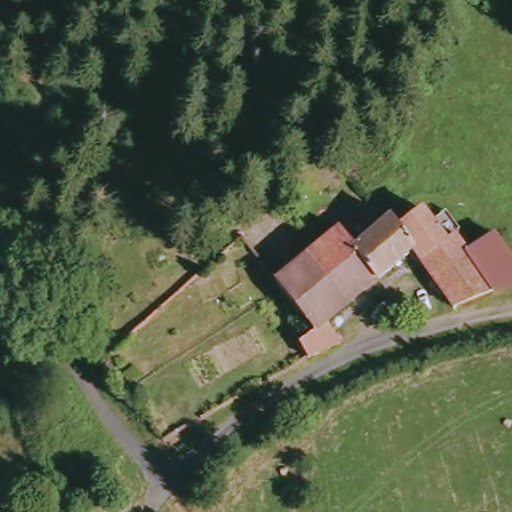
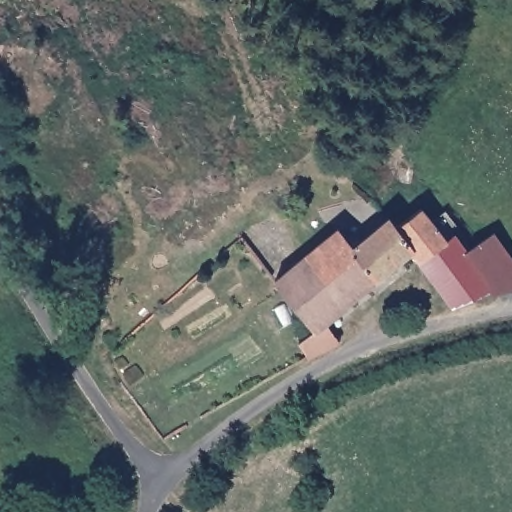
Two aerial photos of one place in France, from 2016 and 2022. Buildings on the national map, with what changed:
unchanged [(402,226),(427,209),(445,242),(457,234),(469,255),(472,258),(503,287),(459,303),(420,252),(402,226)]
unchanged [(304,340),(320,328),(287,292),(278,279),(343,229),(358,247),(397,219),(402,226),(420,252),(330,320),(345,340),(322,350),(311,356),(304,340)]
unchanged [(512,253),(512,286),(503,287),(472,258),(469,255),(495,235),(512,253)]

